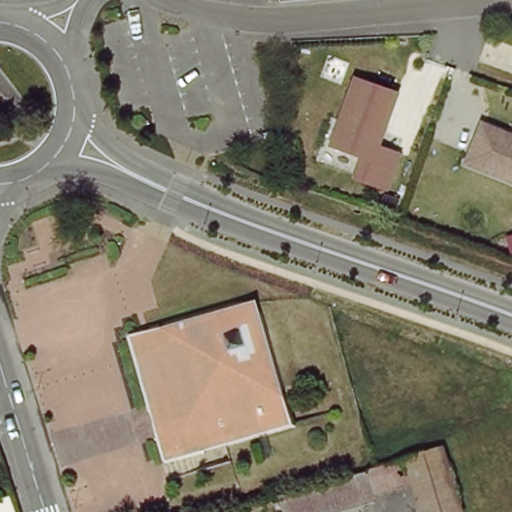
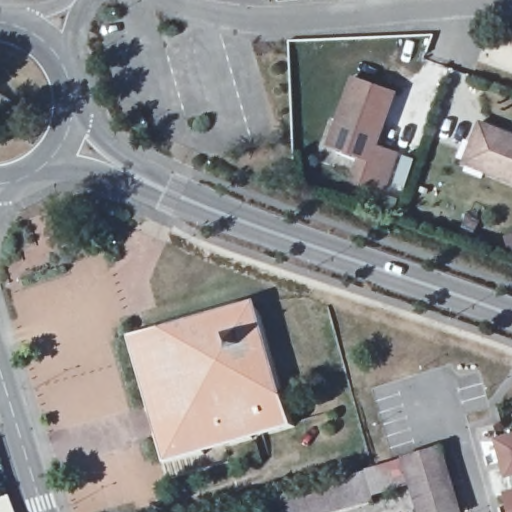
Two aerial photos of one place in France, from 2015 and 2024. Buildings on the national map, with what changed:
unchanged [(337,127),(353,81),(395,96),(376,150),(397,157),(385,191),(355,181),(362,160),(338,151),(329,149),(337,127)]
unchanged [(512,136),(512,183),(492,175),(468,165),(477,145),(484,125),(512,136)]
unchanged [(258,295),(294,424),(167,460),(130,331),(258,295)]
new [(495,437),(512,433),(512,476),(506,477),(495,437)]
unchanged [(444,512),(423,512),(415,485),(407,460),(446,448),(462,507),(444,512)]
unchanged [(374,498),(367,472),(378,468),(407,460),(415,485),(374,498)]
unchanged [(348,477),(367,472),(374,498),(330,512),(285,512),(280,497),(292,493),(348,477)]
new [(512,489),(512,512),(510,512),(504,491),(512,489)]

